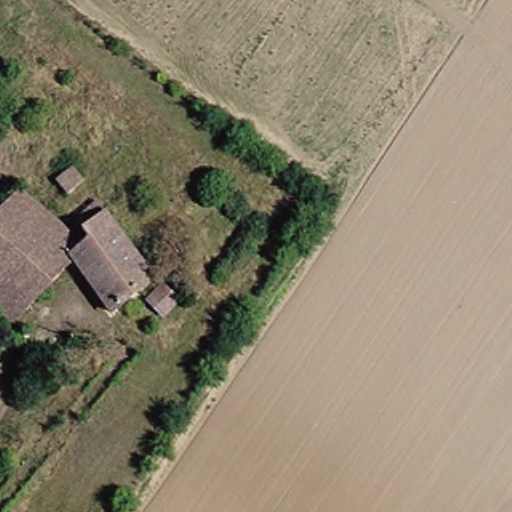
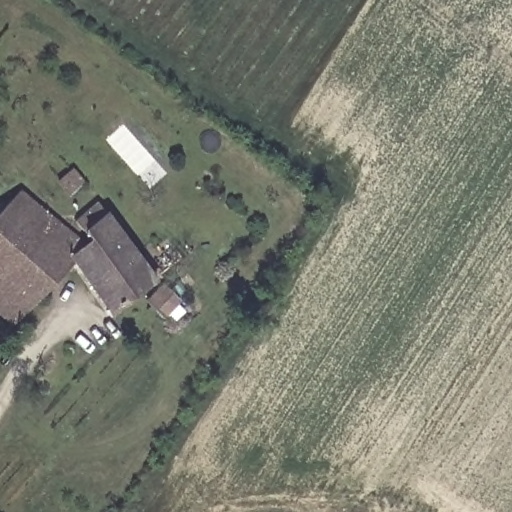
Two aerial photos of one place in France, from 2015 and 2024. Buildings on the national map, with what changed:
unchanged [(80,235),(68,222),(90,200),(146,279),(106,314),(62,264),(8,323),(0,316),(0,208),(15,190),(72,248),(80,235)]
unchanged [(162,318),(143,300),(158,286),(174,302),(162,318)]

